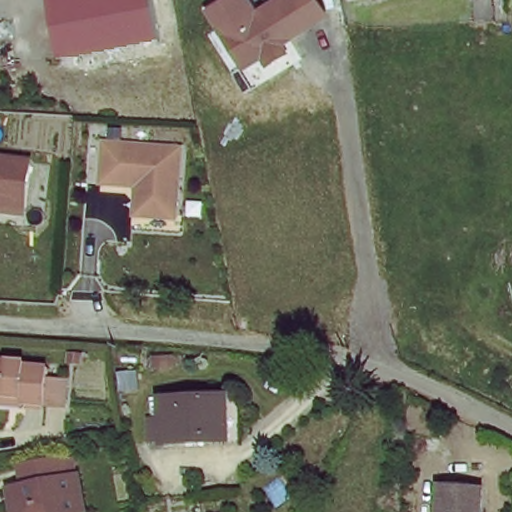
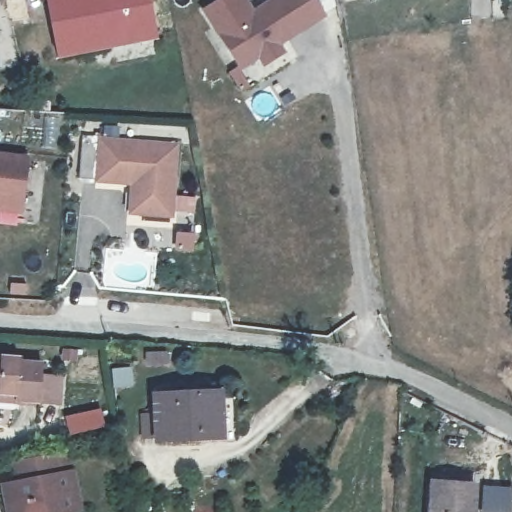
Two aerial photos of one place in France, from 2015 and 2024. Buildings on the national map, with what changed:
unchanged [(42,0),(145,0),(154,39),(55,60),(47,21),(42,0)]
unchanged [(281,45),(286,53),(264,67),(258,59),(241,70),(202,11),(219,0),(247,0),(254,10),(270,0),(315,0),(326,16),(281,45)]
unchanged [(137,184),(101,182),(103,143),(179,147),(175,216),(144,214),(135,214),(137,184)]
unchanged [(0,158),(23,159),(20,202),(19,202),(18,212),(0,211),(0,158)]
unchanged [(13,359),(38,361),(37,374),(55,376),(53,402),(9,398),(0,398),(0,354),(13,355),(13,359)]
unchanged [(158,391),(225,390),(225,435),(151,437),(149,416),(160,415),(158,391)]
unchanged [(13,480),(10,462),(58,455),(61,473),(70,471),(78,511),(72,512),(6,512),(1,482),(13,480)]
unchanged [(474,512),(428,512),(430,486),(476,488),(474,512)]
new [(484,489),(512,491),(512,512),(482,512),(484,489)]

